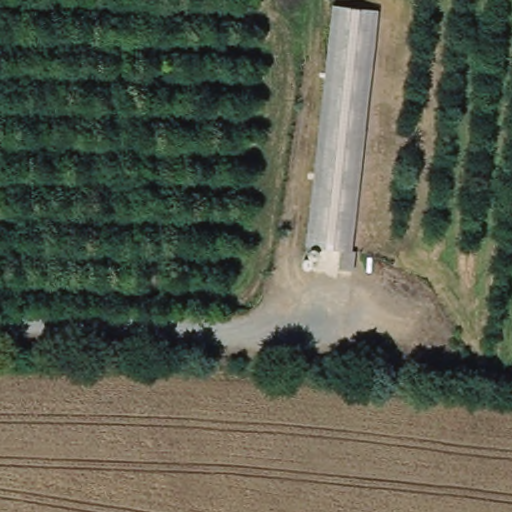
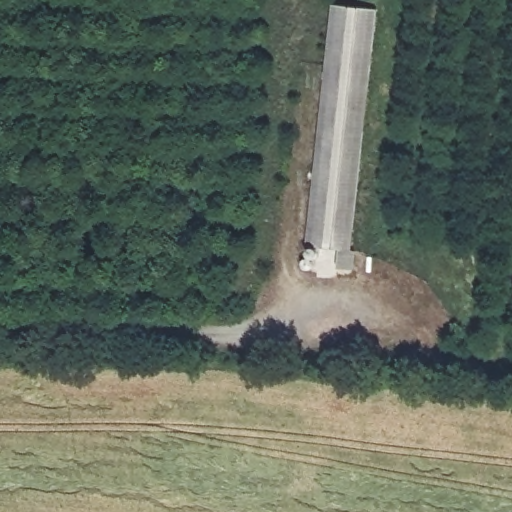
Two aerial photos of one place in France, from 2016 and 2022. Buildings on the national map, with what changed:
unchanged [(357,275),(337,274),(340,254),(306,250),(332,10),(381,13),(357,275)]

